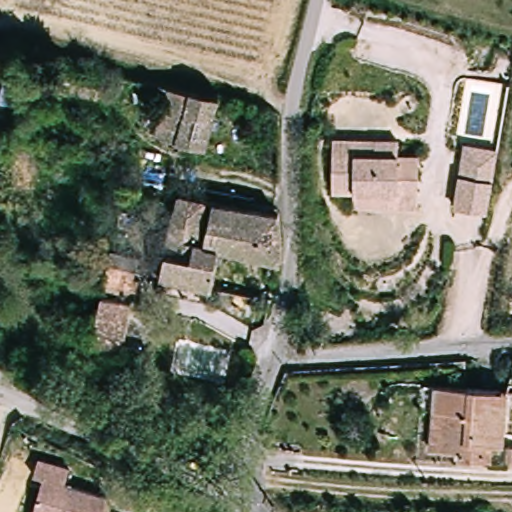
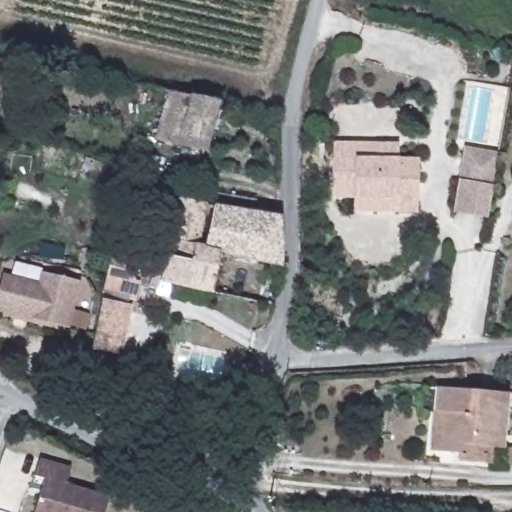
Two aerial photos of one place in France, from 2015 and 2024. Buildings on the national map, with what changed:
unchanged [(191,100),(180,150),(157,146),(168,95),(191,100)]
unchanged [(207,155),(180,150),(191,100),(219,107),(207,155)]
unchanged [(404,162),(425,162),(424,182),(404,182),(404,200),(360,199),(338,199),(339,161),(339,146),(382,146),(405,147),(404,162)]
unchanged [(485,218),(455,210),(459,181),(464,150),(494,156),(490,186),(485,218)]
unchanged [(404,200),(404,182),(424,182),(423,214),(360,212),(360,199),(404,200)]
unchanged [(213,207),(208,256),(221,258),(214,297),(163,287),(178,202),(213,207)]
unchanged [(283,267),(279,268),(221,258),(208,256),(213,207),(275,217),(283,267)]
unchanged [(114,255),(138,261),(133,277),(144,281),(139,302),(104,292),(114,255)]
new [(35,282),(38,271),(76,279),(66,326),(0,312),(0,275),(35,282)]
unchanged [(433,416),(435,392),(505,396),(501,451),(485,450),(483,467),(460,466),(460,457),(442,456),(430,455),(433,416)]
unchanged [(47,477),(38,475),(43,458),(73,468),(68,485),(111,498),(106,512),(36,512),(47,477)]

